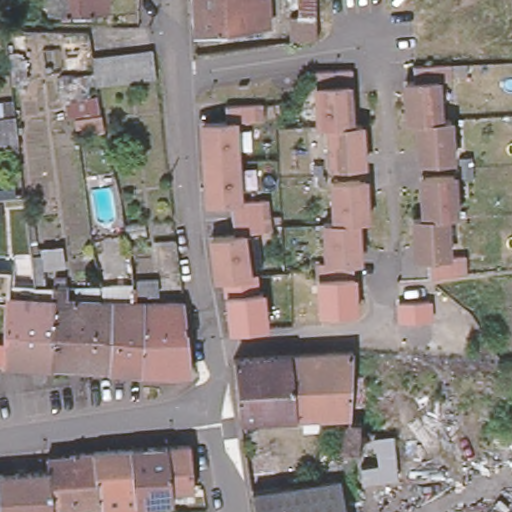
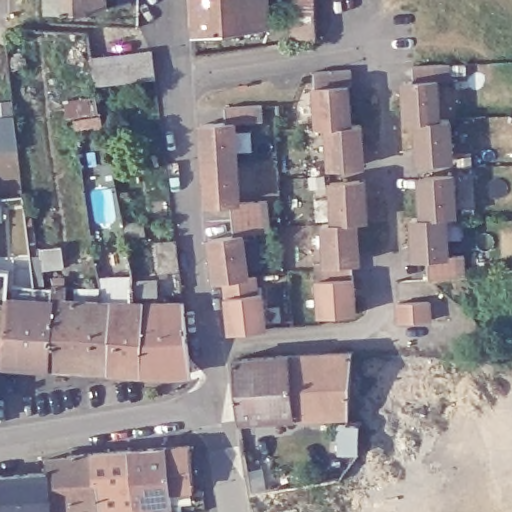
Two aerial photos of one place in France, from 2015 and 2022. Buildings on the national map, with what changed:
unchanged [(50,16),(50,0),(108,0),(109,14),(50,16)]
unchanged [(198,36),(196,0),(270,0),(271,27),(198,36)]
unchanged [(295,43),(295,42),(288,42),(288,0),(316,0),(316,40),(295,43)]
unchanged [(120,56),(136,55),(151,53),(155,79),(139,81),(124,82),(108,84),(96,85),(93,59),(105,57),(120,56)]
unchanged [(448,68),(449,84),(436,85),(438,123),(448,122),(451,165),(417,167),(414,127),(404,127),(402,86),(412,86),(411,70),(448,68)]
unchanged [(361,126),(363,167),(329,169),(327,129),(319,129),(316,129),(314,89),(313,74),(313,73),(318,72),(350,71),(351,87),(348,87),(351,126),(361,126)]
unchanged [(225,125),(224,109),(261,107),(262,122),(234,124),(239,204),(266,201),(270,233),(243,236),(248,277),(214,281),(208,241),(233,237),(229,205),(205,206),(199,126),(225,125)]
unchanged [(0,151),(0,117),(14,116),(18,150),(0,151)]
unchanged [(411,222),(420,222),(418,181),(452,179),(454,221),(445,221),(447,261),(463,260),(464,278),(428,282),(426,262),(413,262),(411,222)]
unchanged [(356,222),(359,262),(351,262),(352,277),(315,280),(314,264),(324,263),(321,224),(331,222),(329,189),(329,182),(363,180),(363,185),(366,222),(356,222)]
unchanged [(141,221),(145,236),(126,240),(123,225),(141,221)]
unchanged [(181,272),(162,274),(157,242),(176,240),(181,272)]
unchanged [(6,272),(8,272),(6,300),(5,304),(0,304),(0,262),(6,262),(6,272)]
unchanged [(158,297),(133,297),(133,282),(158,281),(158,297)]
unchanged [(99,373),(49,370),(1,366),(5,304),(6,300),(37,302),(36,288),(52,288),(63,288),(71,288),(94,288),(99,304),(102,305),(99,373)]
unchanged [(102,305),(118,305),(134,303),(143,303),(141,377),(99,373),(102,305)]
unchanged [(143,303),(169,303),(168,378),(141,377),(143,303)]
unchanged [(169,303),(183,304),(190,375),(168,378),(169,303)]
unchanged [(1,366),(0,365),(0,304),(5,304),(1,366)]
unchanged [(362,424),(361,453),(343,453),(341,417),(300,418),(294,357),(356,353),(349,416),(348,422),(362,424)]
unchanged [(294,357),(300,418),(242,422),(237,360),(294,357)]
unchanged [(358,464),(373,462),(369,438),(388,435),(394,478),(374,482),(360,483),(358,464)]
unchanged [(96,460),(133,457),(170,454),(193,452),(197,495),(174,497),(175,507),(158,509),(158,512),(104,512),(96,460)]
unchanged [(51,478),(50,466),(73,463),(73,461),(96,460),(104,512),(54,512),(51,478)]
unchanged [(51,478),(54,512),(3,512),(0,482),(51,478)]
unchanged [(343,480),(349,512),(257,512),(254,493),(343,480)]
unchanged [(3,512),(0,512),(0,482),(3,512)]

